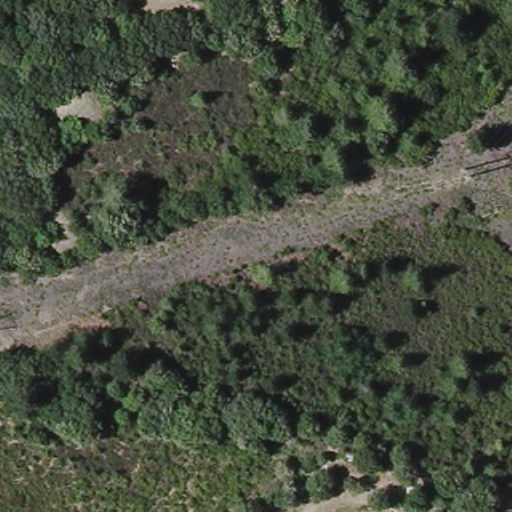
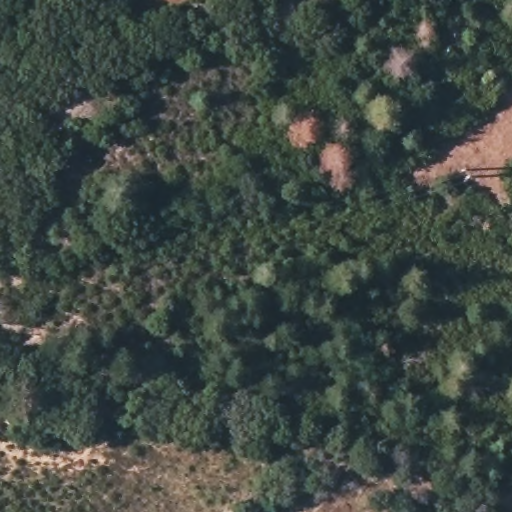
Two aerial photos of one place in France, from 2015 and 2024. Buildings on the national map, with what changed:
unchanged [(254,37),(252,21),(270,19),(272,35),(254,37)]

